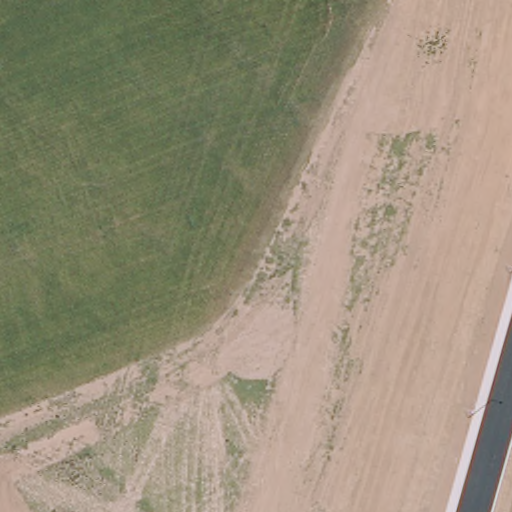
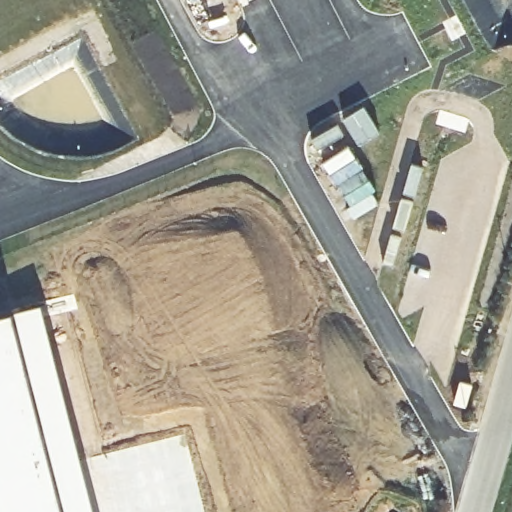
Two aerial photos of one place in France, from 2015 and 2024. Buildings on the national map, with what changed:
new [(13,310),(43,302),(96,512),(0,512),(0,314),(13,310)]

